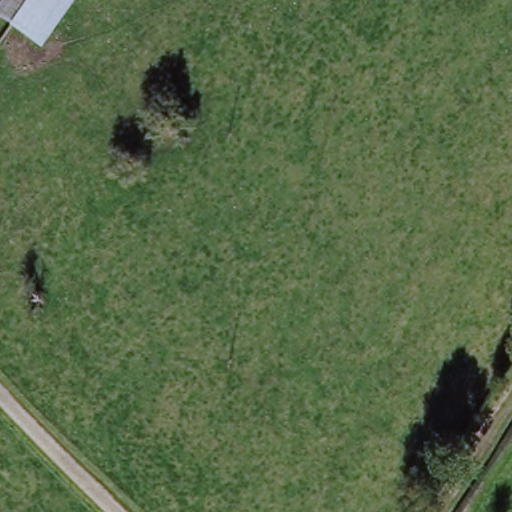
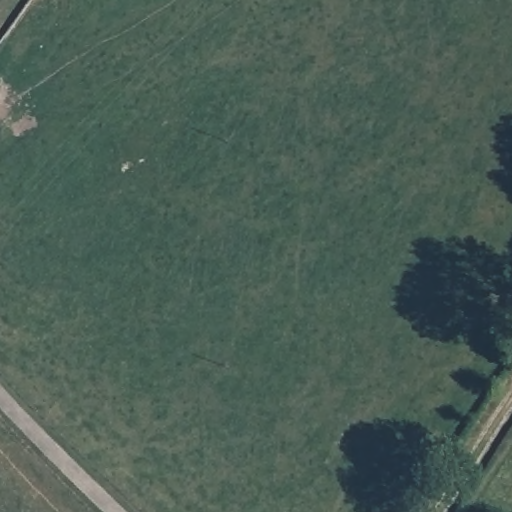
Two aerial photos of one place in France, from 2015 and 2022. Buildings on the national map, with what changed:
demolished [(80,0),(44,51),(0,16),(0,6),(4,0),(80,0)]

